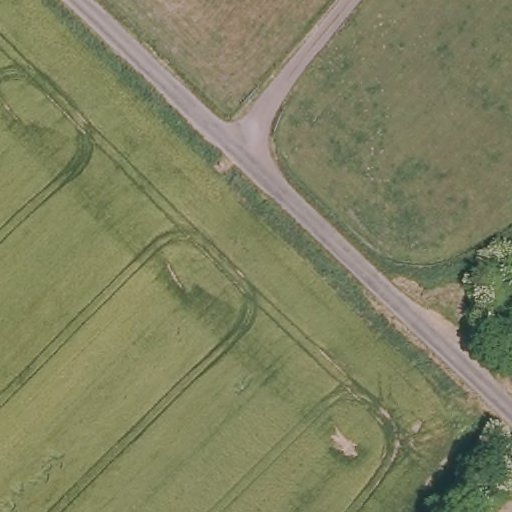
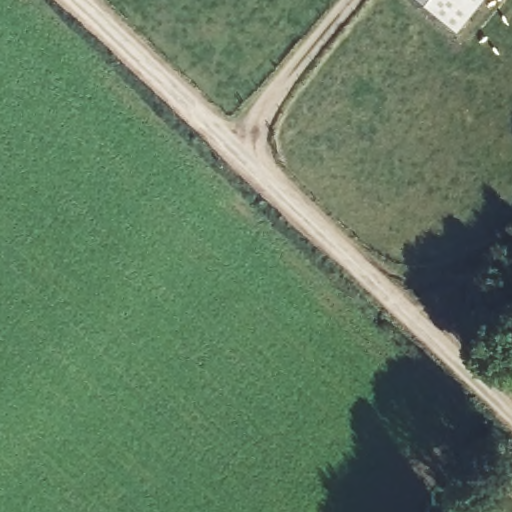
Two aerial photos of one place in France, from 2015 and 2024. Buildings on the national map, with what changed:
new [(457,39),(407,0),(488,0),(457,39)]

